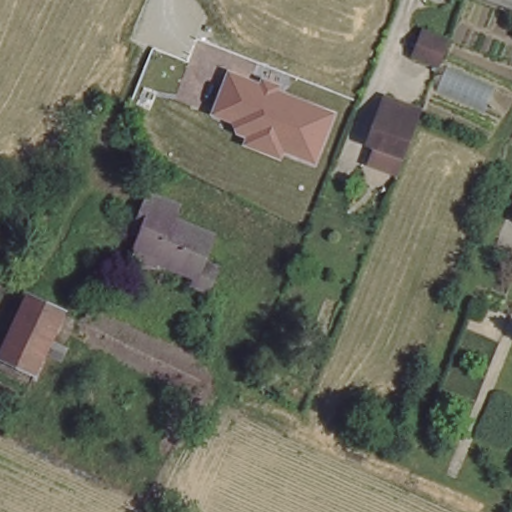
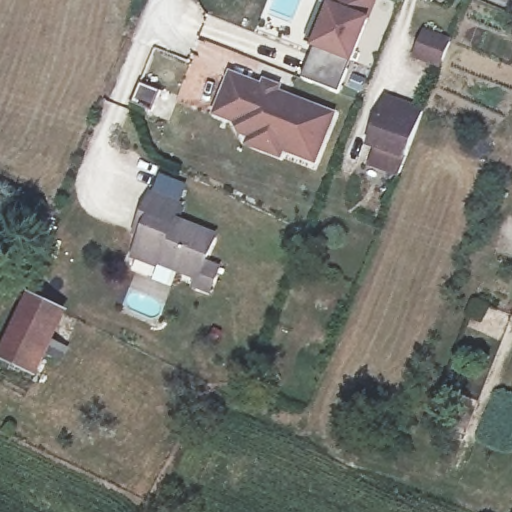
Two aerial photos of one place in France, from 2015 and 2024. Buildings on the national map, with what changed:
new [(352,65),(349,64),(338,91),(302,78),(315,49),(310,47),(311,45),(304,42),(319,4),(318,3),(318,0),(377,0),(371,18),(352,65)]
unchanged [(417,52),(425,33),(445,41),(437,60),(417,52)]
unchanged [(259,83),(261,80),(280,87),(279,91),(336,113),(316,164),(284,151),(280,160),(244,146),(246,137),(236,134),(234,123),(212,115),(227,71),(259,83)]
unchanged [(392,98),(418,108),(404,144),(394,172),(375,165),(386,136),(379,134),(392,98)]
unchanged [(189,291),(192,282),(137,259),(141,241),(131,237),(147,195),(184,209),(182,221),(218,232),(210,263),(220,266),(213,298),(189,291)]
unchanged [(81,319),(61,362),(44,354),(34,376),(0,359),(0,351),(26,294),(81,319)]

